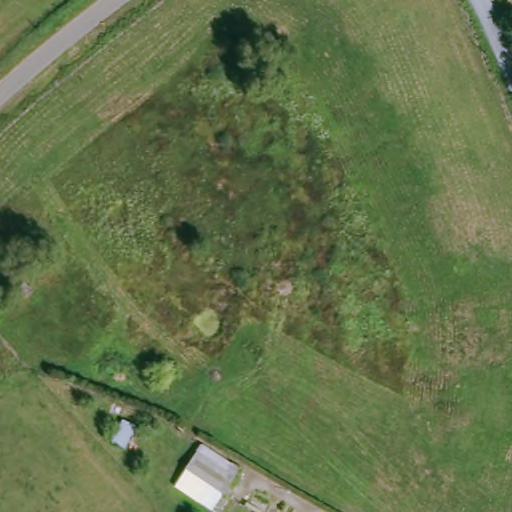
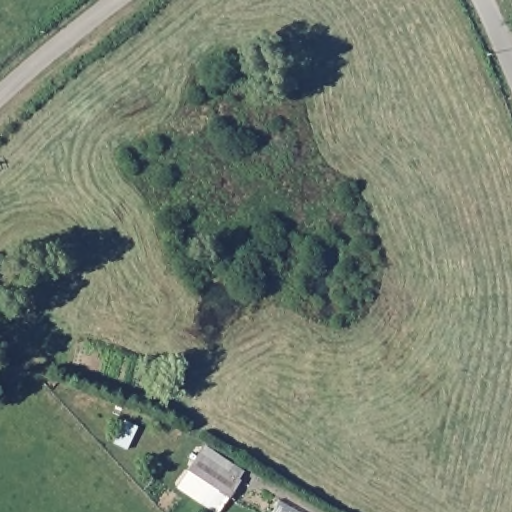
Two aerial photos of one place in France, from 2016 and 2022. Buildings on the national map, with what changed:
unchanged [(233,475),(239,467),(248,474),(243,482),(246,485),(233,500),(191,472),(203,455),(233,475)]

